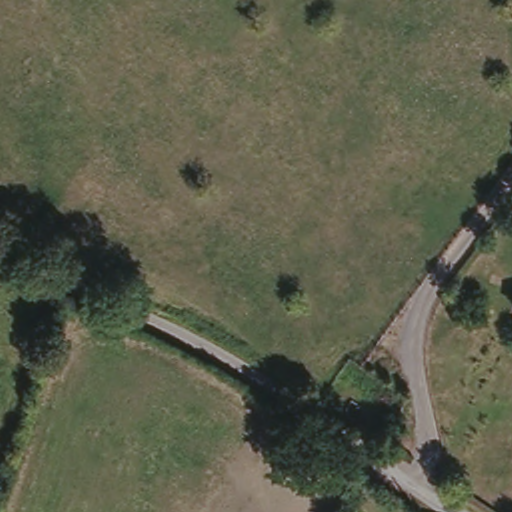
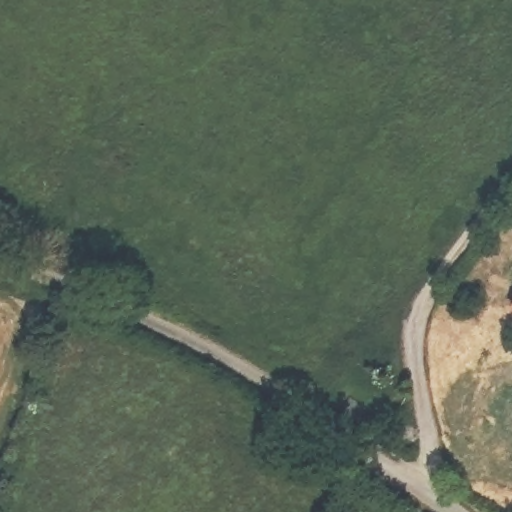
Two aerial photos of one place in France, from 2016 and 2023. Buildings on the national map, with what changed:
unchanged [(426,512),(427,510),(431,512),(426,512)]

